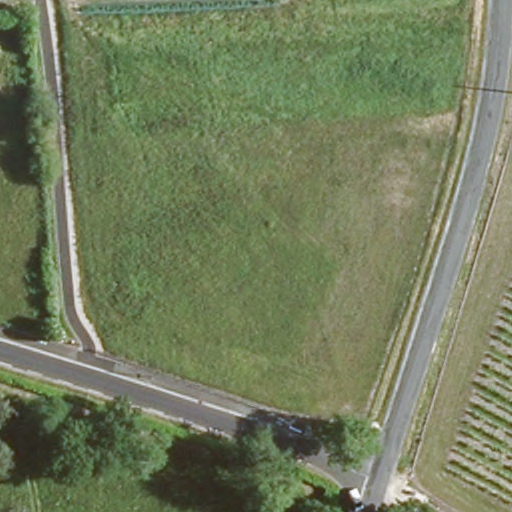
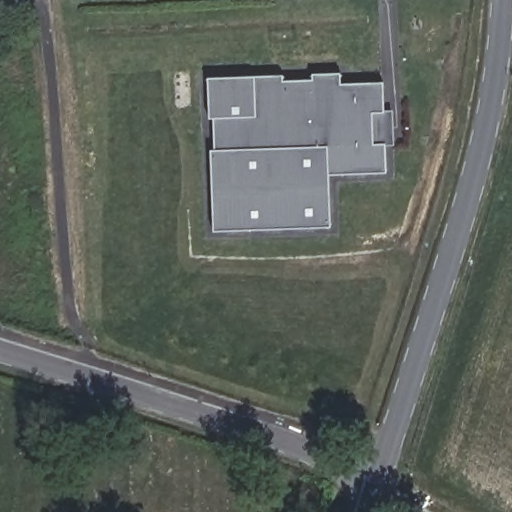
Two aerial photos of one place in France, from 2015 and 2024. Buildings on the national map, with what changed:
new [(214,232),(210,150),(215,150),(214,118),(209,118),(207,78),(285,75),(285,79),(313,79),(312,74),(341,73),(342,83),(383,82),(385,111),(394,110),(395,146),(385,146),(386,172),(330,174),(332,227),(214,232)]

